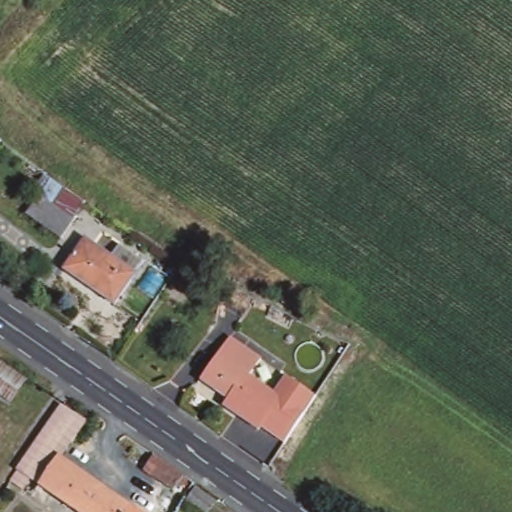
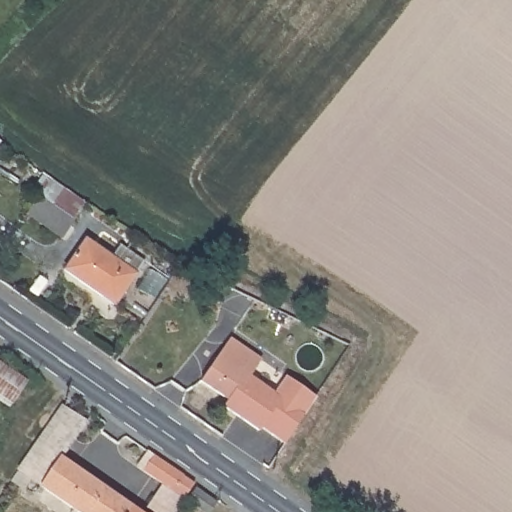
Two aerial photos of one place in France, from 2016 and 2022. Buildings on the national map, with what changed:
unchanged [(44,195),(76,218),(62,237),(30,214),(44,195)]
unchanged [(114,258),(124,245),(149,263),(117,307),(67,270),(89,240),(114,258)]
unchanged [(203,309),(185,297),(196,279),(259,315),(253,327),(207,301),(203,309)]
unchanged [(236,341),(266,363),(254,379),(282,399),(290,388),(303,398),(273,440),(229,408),(233,403),(205,383),(236,341)]
unchanged [(341,359),(332,372),(320,363),(329,350),(341,359)]
unchanged [(32,380),(13,407),(0,398),(0,357),(32,380)]
unchanged [(91,422),(67,453),(44,436),(67,403),(91,422)]
unchanged [(13,481),(44,436),(67,453),(74,458),(135,503),(128,512),(79,512),(35,480),(26,491),(13,481)]
unchanged [(224,504),(218,512),(200,512),(189,505),(183,512),(158,512),(172,493),(147,472),(159,457),(187,477),(179,490),(193,499),(199,489),(201,487),(224,504)]
unchanged [(128,512),(135,503),(148,512),(128,512)]

